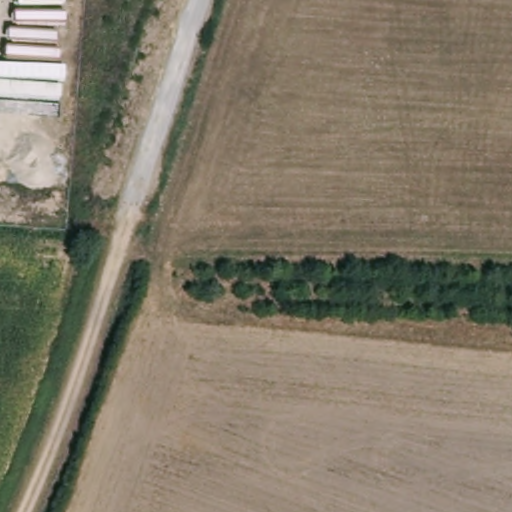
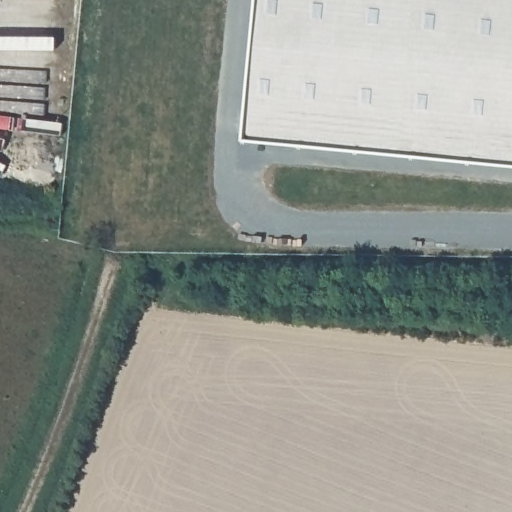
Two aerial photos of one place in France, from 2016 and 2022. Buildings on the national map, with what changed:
new [(259,0),(512,0),(512,161),(246,139),(259,0)]

